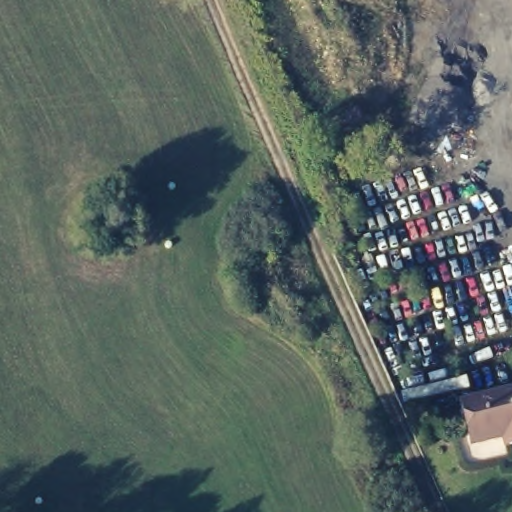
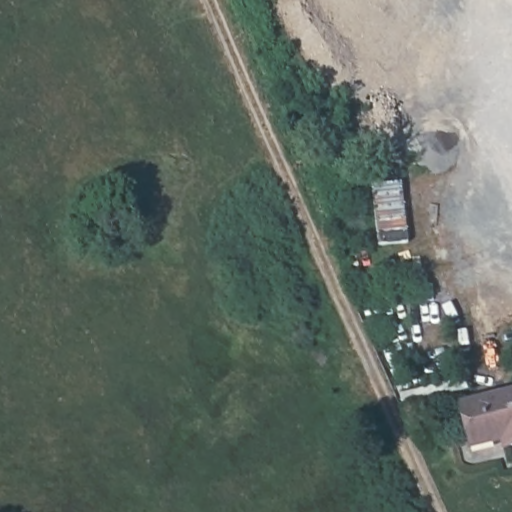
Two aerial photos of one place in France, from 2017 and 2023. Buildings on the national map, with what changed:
unchanged [(504,446),(501,437),(471,445),(459,402),(512,387),(512,443),(504,446)]

